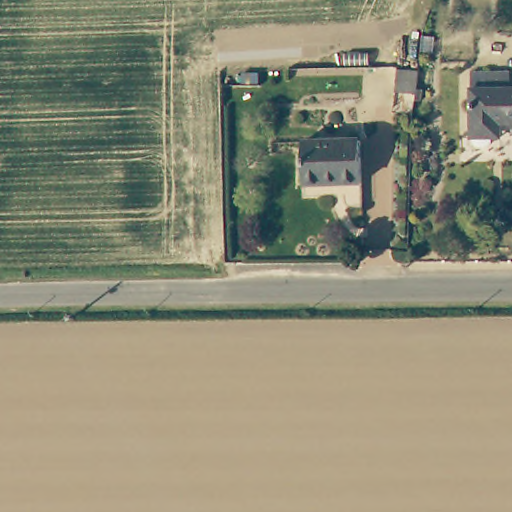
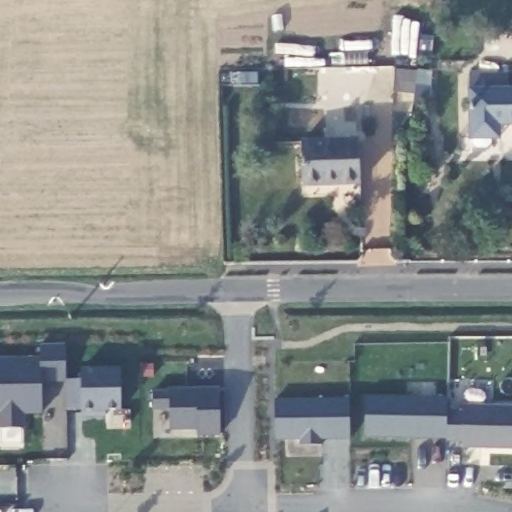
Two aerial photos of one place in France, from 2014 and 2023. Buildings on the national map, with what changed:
unchanged [(502,139),(472,138),(473,87),(512,87),(512,123),(502,123),(502,139)]
unchanged [(358,184),(298,182),(300,141),(360,141),(358,184)]
new [(65,383),(42,383),(43,416),(25,417),(25,428),(0,429),(0,358),(40,357),(40,344),(65,343),(65,383)]
new [(82,380),(81,368),(120,368),(120,411),(106,412),(108,416),(84,416),(82,409),(67,410),(65,383),(82,380)]
new [(170,390),(170,389),(220,387),(220,435),(196,435),(196,429),(170,429),(170,409),(151,409),(152,390),(170,390)]
new [(448,408),(462,409),(463,404),(512,406),(512,448),(461,447),(463,441),(445,441),(446,438),(364,436),(366,394),(447,397),(448,408)]
new [(350,439),(322,439),(322,445),(301,443),(301,439),(274,440),(275,398),(350,397),(350,439)]

